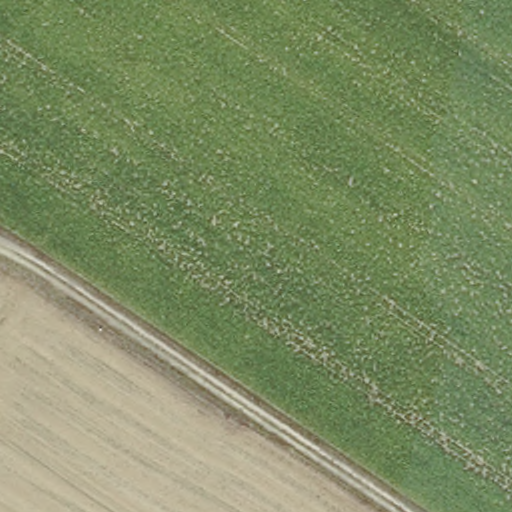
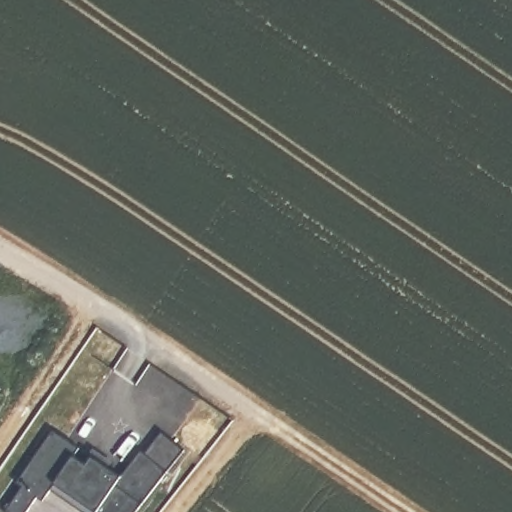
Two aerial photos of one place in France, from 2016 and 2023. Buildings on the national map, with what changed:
new [(2,388),(0,391),(0,387),(2,388)]
new [(136,512),(86,512),(50,486),(41,498),(35,495),(23,512),(7,512),(5,510),(23,482),(17,479),(53,428),(79,445),(74,452),(87,461),(95,452),(124,473),(141,449),(145,453),(162,430),(188,448),(136,512)]

